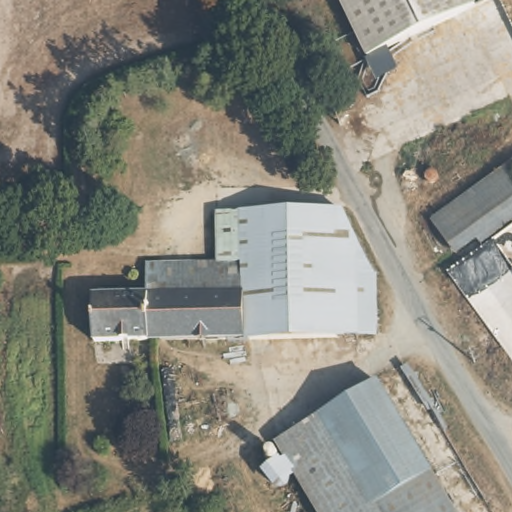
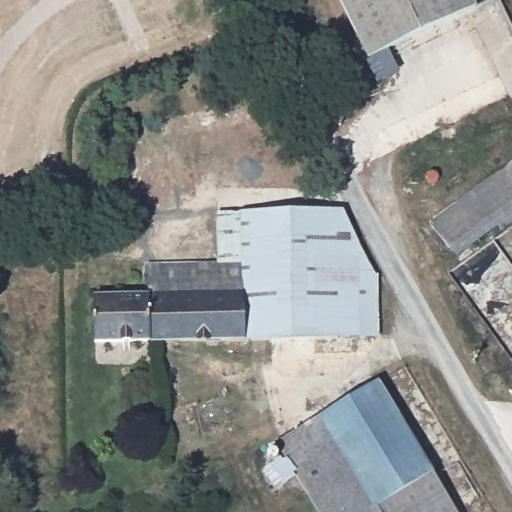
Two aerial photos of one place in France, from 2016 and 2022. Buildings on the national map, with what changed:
unchanged [(368,56),(340,0),(472,0),(474,6),(368,56)]
unchanged [(512,164),(512,228),(462,264),(433,223),(512,164)]
unchanged [(249,206),(347,205),(383,274),(385,331),(368,331),(367,354),(298,353),(298,331),(247,332),(247,289),(246,289),(247,288),(249,206)]
unchanged [(220,266),(222,206),(249,206),(247,288),(246,289),(152,289),(153,264),(220,266)]
unchanged [(94,333),(94,288),(152,289),(246,289),(247,289),(247,332),(145,332),(94,333)]
unchanged [(277,442),(383,379),(414,430),(284,456),(277,442)]
unchanged [(414,430),(461,512),(319,512),(284,456),(414,430)]
unchanged [(290,476),(290,477),(289,478),(289,479),(289,480),(288,481),(287,482),(285,483),(284,483),(284,484),(283,484),(282,484),(281,484),(280,484),(279,484),(278,484),(277,484),(276,484),(275,483),(274,483),(274,482),(273,481),(272,480),(272,479),(271,479),(271,478),(270,477),(270,476),(270,475),(270,474),(270,473),(270,472),(271,471),(271,470),(272,470),(272,469),(273,468),(274,467),(275,466),(276,466),(277,465),(278,465),(279,465),(280,465),(282,465),(283,465),(284,465),(285,466),(286,466),(287,467),(288,468),(289,469),(289,471),(290,472),(290,473),(290,474),(290,475),(290,476)]

